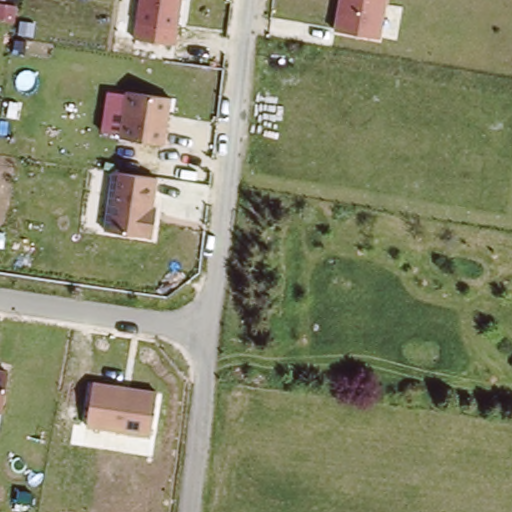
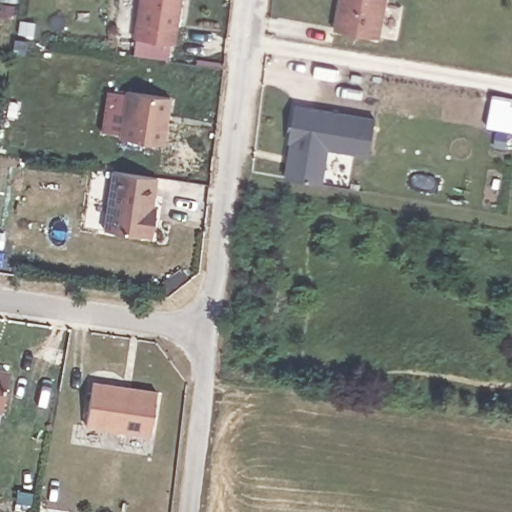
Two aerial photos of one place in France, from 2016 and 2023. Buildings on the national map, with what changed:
unchanged [(135,23),(138,0),(180,0),(177,31),(135,23)]
unchanged [(334,31),(339,0),(387,0),(382,38),(334,31)]
unchanged [(170,96),(163,144),(115,137),(122,89),(170,96)]
new [(375,119),(369,158),(327,151),(322,184),(284,178),(289,145),(287,145),(294,106),(375,119)]
unchanged [(157,177),(148,240),(104,233),(112,170),(157,177)]
unchanged [(0,409),(0,366),(11,368),(2,410),(0,409)]
unchanged [(150,435),(85,428),(93,381),(158,389),(150,435)]

